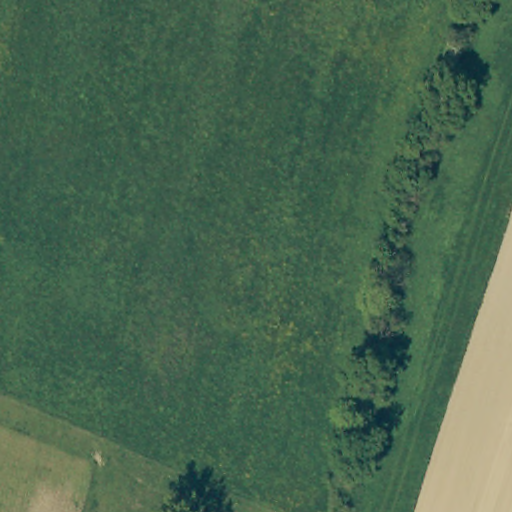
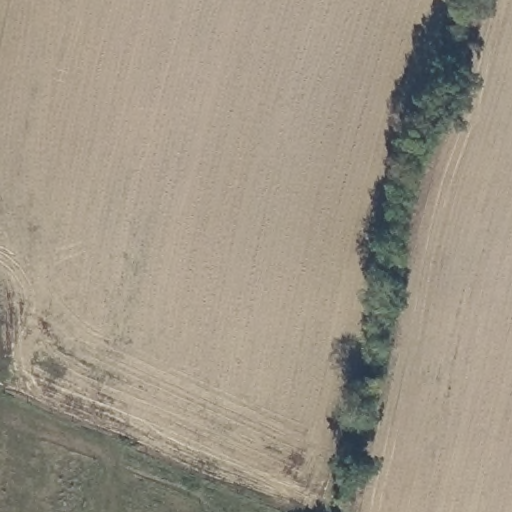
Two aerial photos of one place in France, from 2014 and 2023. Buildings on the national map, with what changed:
[]

